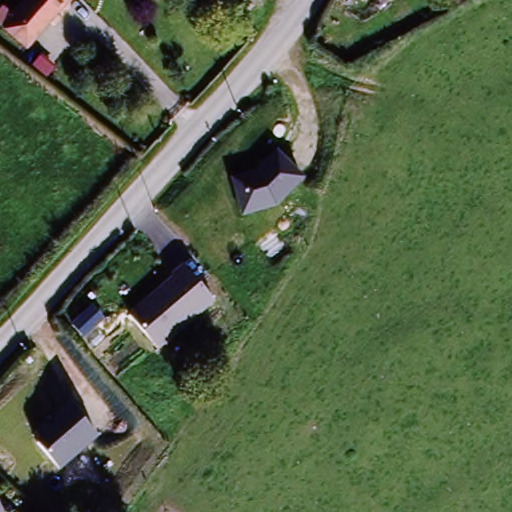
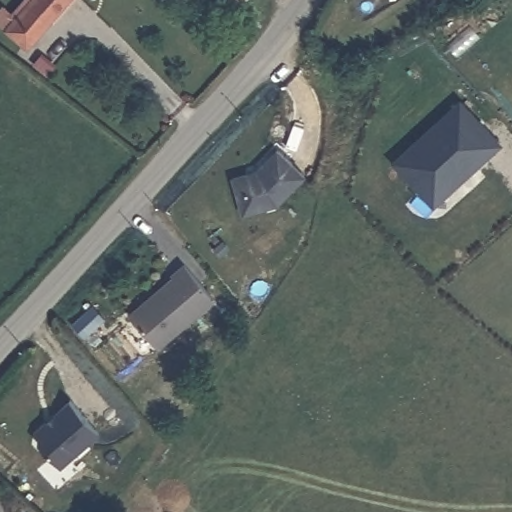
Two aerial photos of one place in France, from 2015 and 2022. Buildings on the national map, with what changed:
unchanged [(6,35),(15,25),(37,0),(70,0),(33,41),(25,50),(6,35)]
unchanged [(221,0),(252,0),(236,15),(221,0)]
new [(460,102),(501,146),(441,200),(428,200),(394,162),(460,102)]
unchanged [(256,170),(278,148),(308,179),(279,206),(244,214),(236,176),(256,170)]
unchanged [(213,301),(158,348),(128,312),(186,264),(213,301)]
unchanged [(35,437),(73,405),(98,435),(61,467),(35,437)]

